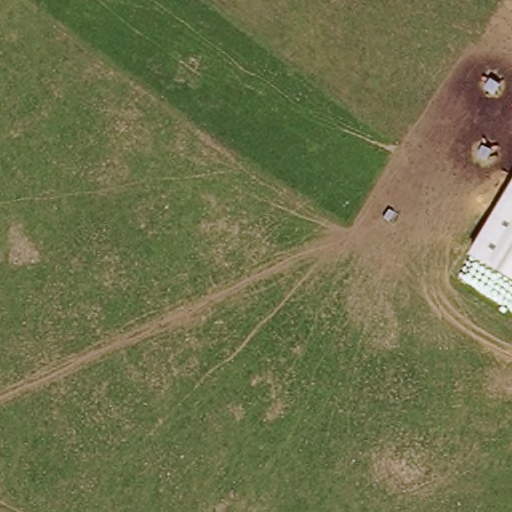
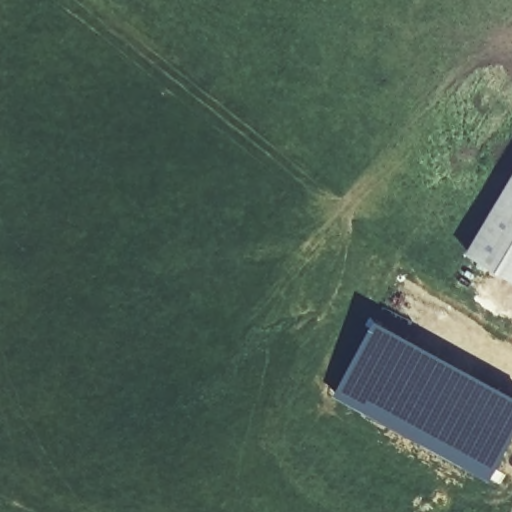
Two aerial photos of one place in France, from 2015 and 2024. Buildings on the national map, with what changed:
unchanged [(469,250),(512,177),(512,276),(469,250)]
new [(376,317),(512,391),(512,444),(490,482),(382,423),(334,394),(376,317)]

